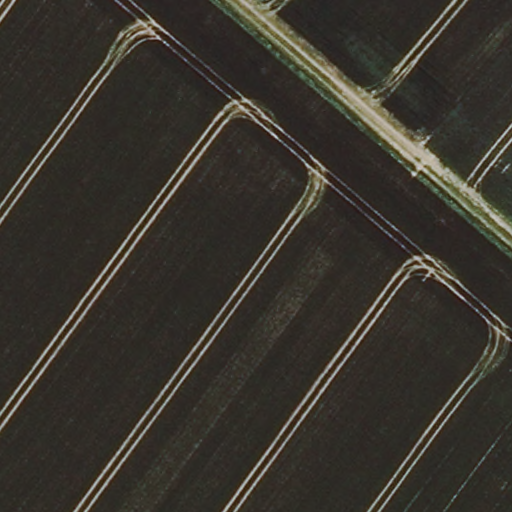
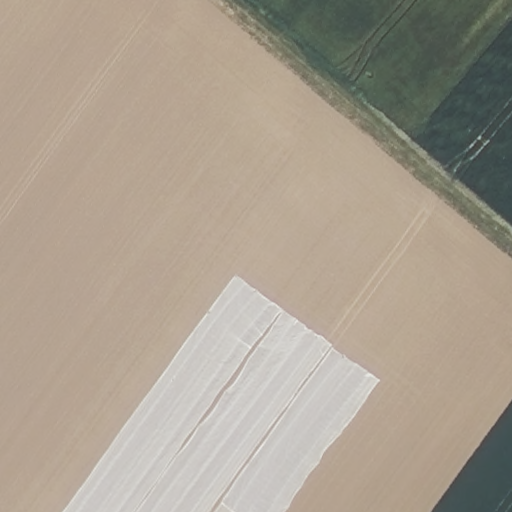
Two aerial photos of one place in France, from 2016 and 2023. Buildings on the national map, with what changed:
[]

